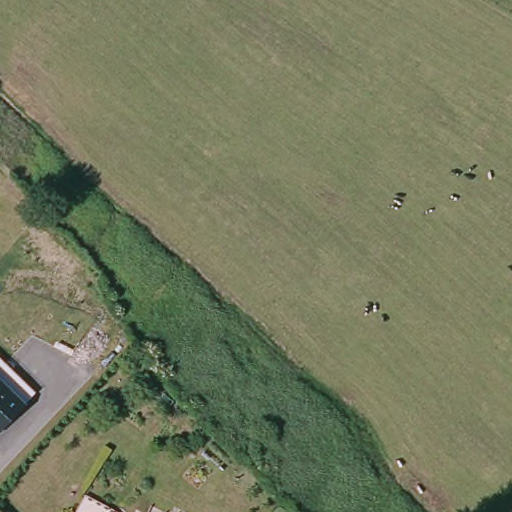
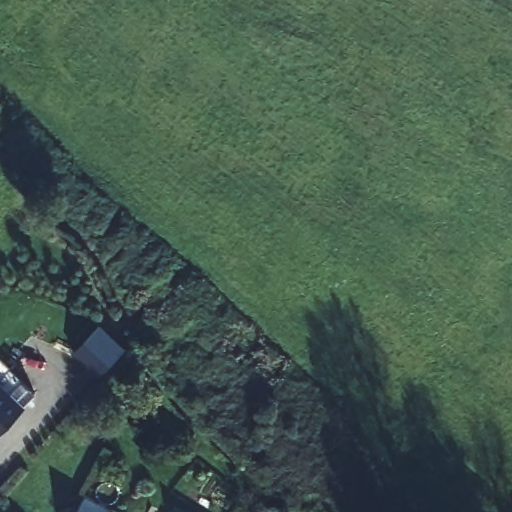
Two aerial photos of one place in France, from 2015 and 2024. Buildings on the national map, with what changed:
new [(74,352),(100,324),(125,347),(99,375),(74,352)]
unchanged [(0,432),(0,381),(25,405),(0,432)]

